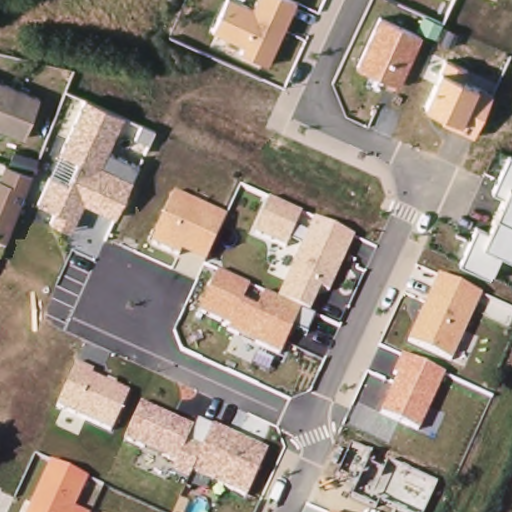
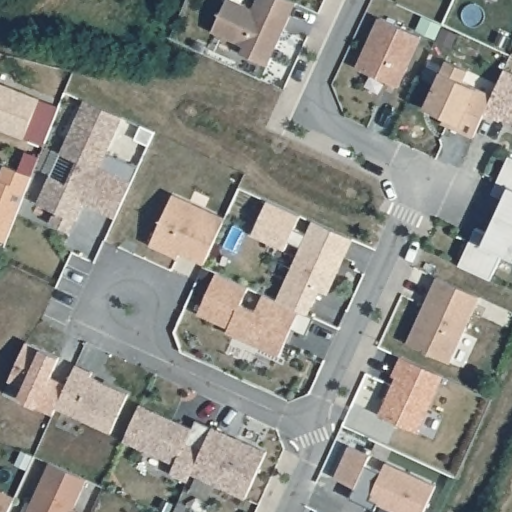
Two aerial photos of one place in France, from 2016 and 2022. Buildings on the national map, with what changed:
unchanged [(269,64),(241,53),(244,46),(212,31),(225,0),(236,0),(253,7),(256,0),(295,0),(299,1),(269,64)]
unchanged [(423,35),(398,87),(354,66),(379,14),(423,35)]
unchanged [(471,67),(463,80),(493,94),(476,137),(441,121),(443,115),(424,107),(446,56),(471,67)]
unchanged [(0,129),(0,82),(39,99),(23,137),(0,129)]
unchanged [(124,117),(109,150),(140,163),(115,218),(84,204),(71,233),(49,223),(55,213),(37,204),(84,97),(124,117)]
unchanged [(512,155),(512,259),(503,254),(492,279),(459,262),(477,227),(488,234),(504,196),(493,191),(509,154),(512,155)]
unchanged [(29,176),(4,239),(0,238),(0,170),(3,164),(29,176)]
unchanged [(225,215),(204,265),(180,253),(178,257),(150,244),(174,192),(225,215)]
unchanged [(354,236),(326,295),(322,292),(312,313),(314,315),(305,334),(294,328),(280,355),(227,331),(229,325),(198,312),(215,270),(250,287),(242,304),(257,310),(264,292),(277,298),(301,246),(290,241),(285,249),(251,232),(268,197),(354,236)]
unchanged [(438,278),(480,297),(449,361),(408,343),(438,278)]
new [(40,347),(60,355),(50,377),(66,382),(56,406),(53,413),(37,404),(19,396),(24,386),(9,379),(27,340),(40,347)]
unchanged [(444,374),(418,431),(380,413),(397,376),(394,374),(402,355),(444,374)]
unchanged [(95,369),(91,376),(130,393),(111,433),(56,406),(76,359),(95,369)]
unchanged [(192,475),(189,481),(170,472),(174,462),(124,441),(139,403),(193,426),(196,418),(267,447),(246,497),(192,475)]
unchanged [(370,465),(382,469),(388,459),(439,481),(425,512),(396,512),(379,504),(376,509),(351,497),(356,485),(336,477),(351,441),(375,454),(370,465)]
unchanged [(74,508),(83,512),(27,512),(49,458),(89,478),(74,508)]
new [(8,494),(22,500),(17,512),(0,512),(0,489),(9,493),(8,494)]

